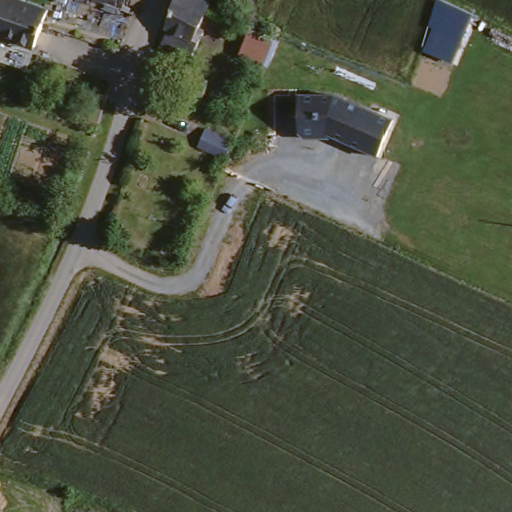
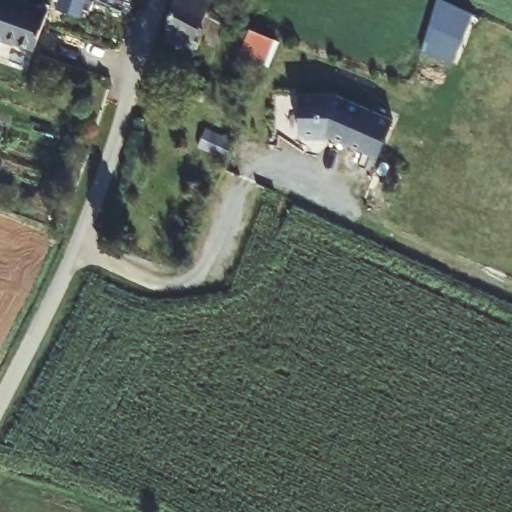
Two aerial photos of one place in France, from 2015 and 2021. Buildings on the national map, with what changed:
unchanged [(4,0),(41,14),(27,53),(0,41),(0,0),(4,0)]
unchanged [(167,23),(165,21),(173,0),(206,0),(191,32),(197,36),(191,49),(162,36),(167,23)]
unchanged [(453,65),(421,53),(431,27),(426,24),(438,0),(447,0),(473,11),(453,65)]
unchanged [(273,41),(264,66),(237,56),(247,31),(273,41)]
unchanged [(202,101),(191,99),(179,96),(180,78),(191,80),(202,83),(202,101)]
unchanged [(302,97),(329,94),(392,121),(381,153),(336,134),(300,135),(302,97)]

